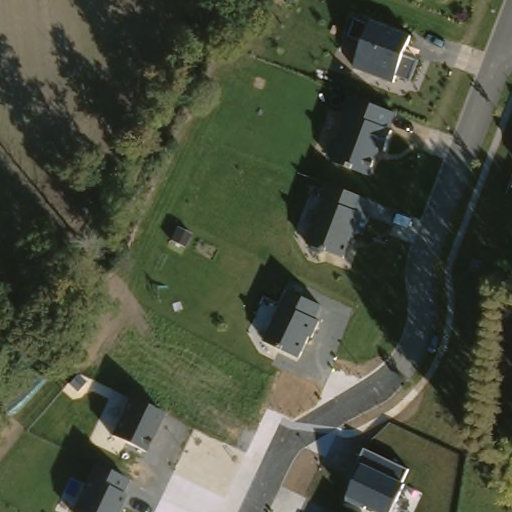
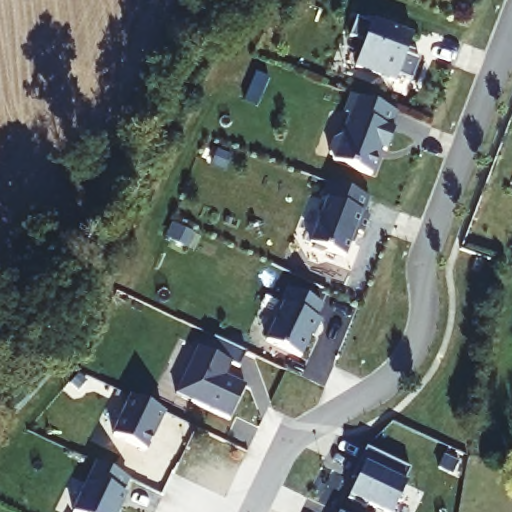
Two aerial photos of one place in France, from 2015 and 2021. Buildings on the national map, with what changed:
unchanged [(406,54),(419,59),(411,80),(398,76),(395,83),(355,69),(371,20),(414,37),(406,54)]
unchanged [(373,174),(336,163),(360,99),(398,114),(373,174)]
unchanged [(369,199),(347,256),(308,244),(330,185),(369,199)]
unchanged [(318,317),(322,319),(316,334),(301,357),(267,340),(291,290),(325,306),(318,317)]
new [(197,347),(206,352),(213,337),(246,352),(238,368),(227,363),(221,375),(245,386),(229,419),(176,394),(197,347)]
unchanged [(146,452),(112,437),(130,397),(166,414),(146,452)]
unchanged [(403,482),(407,484),(393,512),(381,512),(348,496),(364,463),(360,461),(367,449),(410,471),(403,482)]
unchanged [(123,494),(127,496),(118,512),(72,512),(95,464),(129,479),(123,494)]

